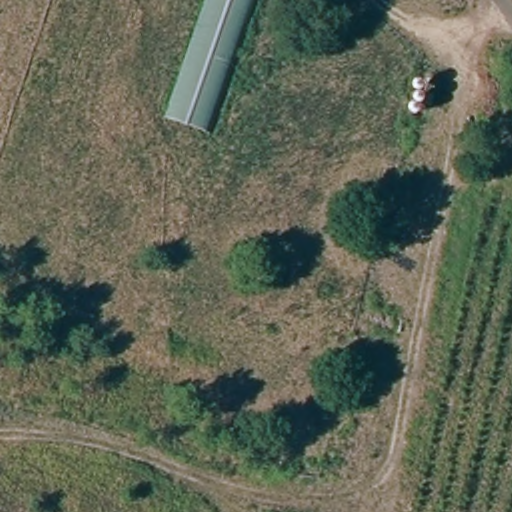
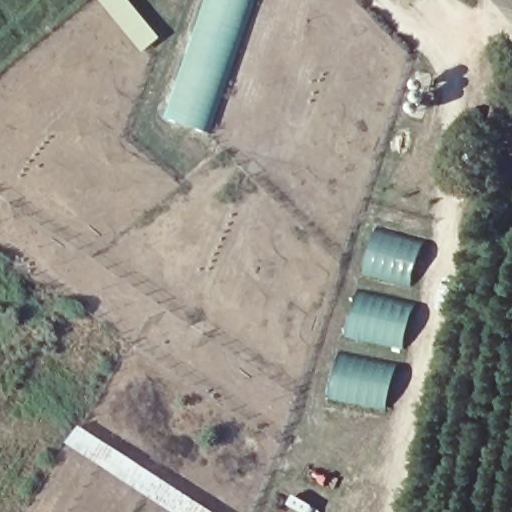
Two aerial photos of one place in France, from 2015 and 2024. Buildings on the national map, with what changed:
new [(129,0),(160,38),(143,51),(100,0),(129,0)]
unchanged [(255,0),(208,130),(166,116),(208,0),(255,0)]
new [(418,0),(424,0),(420,3),(418,0)]
new [(376,227),(423,240),(412,287),(362,273),(376,227)]
new [(345,338),(358,291),(414,303),(404,349),(345,338)]
new [(340,352),(397,365),(385,410),(328,399),(340,352)]
new [(80,426),(212,512),(174,512),(68,443),(80,426)]

